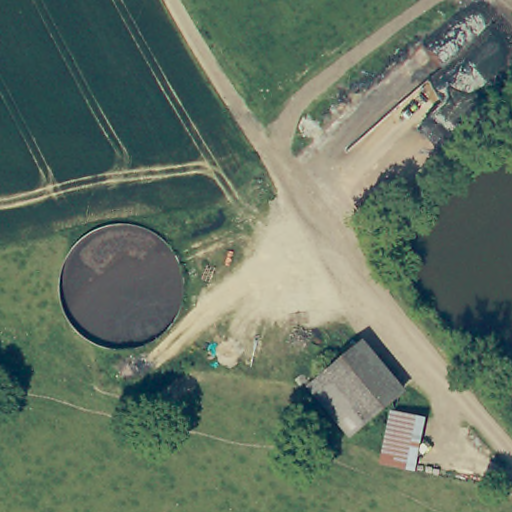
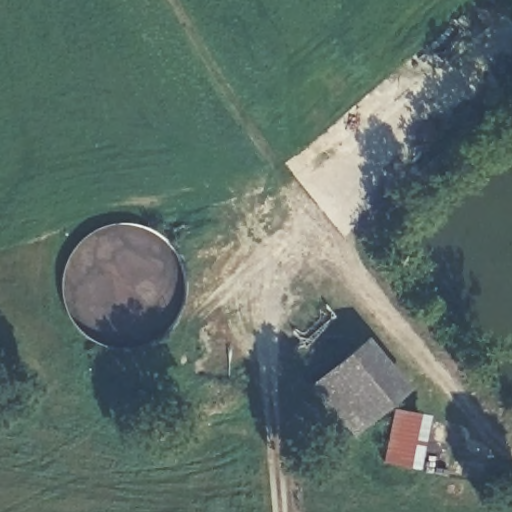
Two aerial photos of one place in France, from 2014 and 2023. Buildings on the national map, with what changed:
unchanged [(360,345),(403,396),(356,436),(313,385),(360,345)]
unchanged [(424,415),(413,470),(385,465),(395,409),(424,415)]

